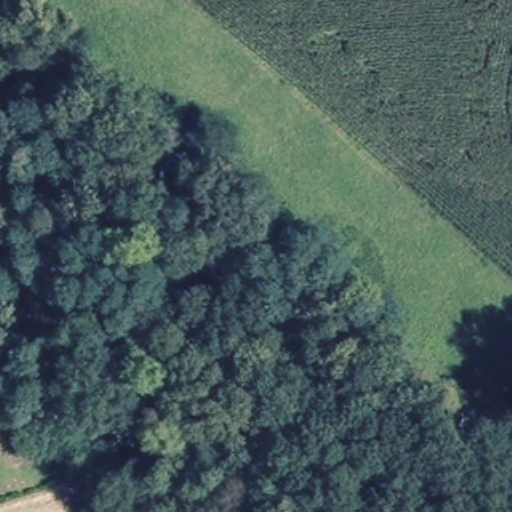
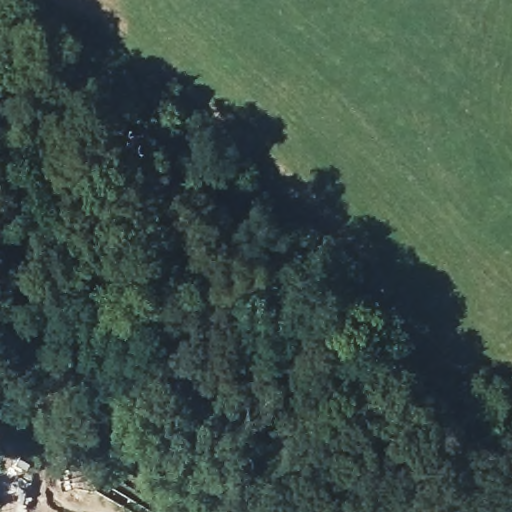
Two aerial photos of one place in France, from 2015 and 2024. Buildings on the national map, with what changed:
[]

